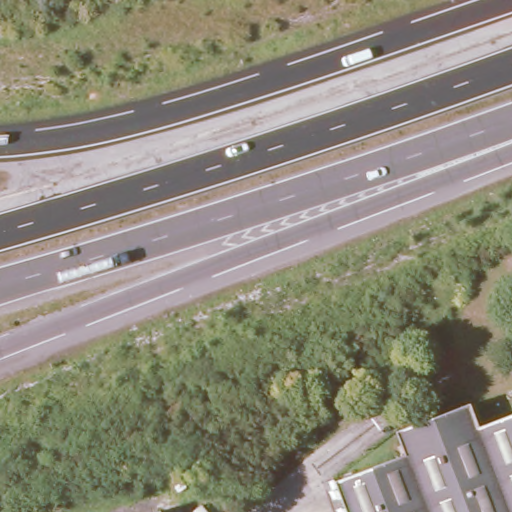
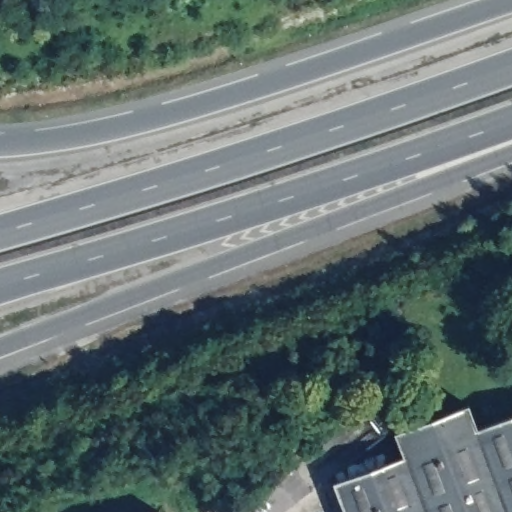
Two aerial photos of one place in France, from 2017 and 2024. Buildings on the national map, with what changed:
unchanged [(396,428),(467,403),(475,423),(512,410),(512,512),(348,512),(335,476),(403,450),(396,428)]
unchanged [(156,506),(158,512),(141,512),(156,506)]

